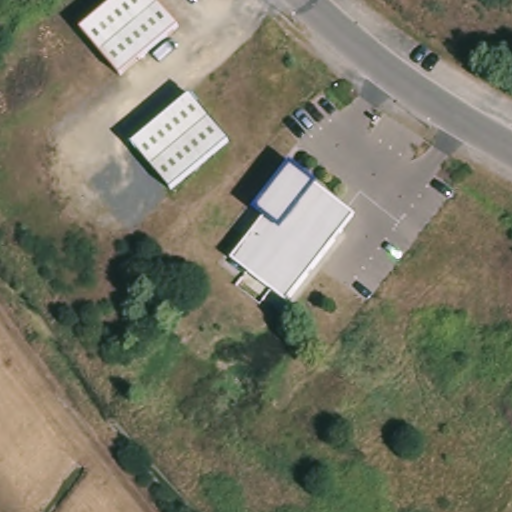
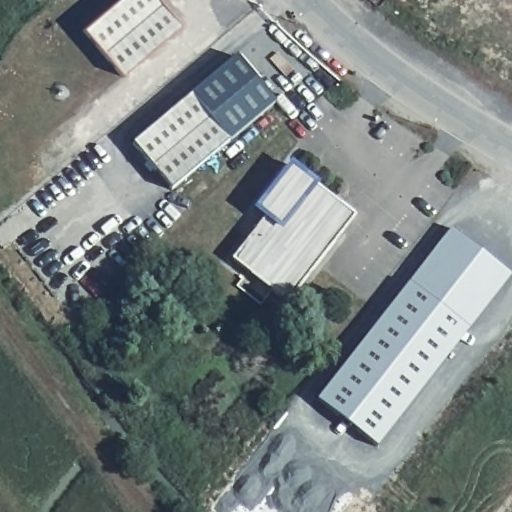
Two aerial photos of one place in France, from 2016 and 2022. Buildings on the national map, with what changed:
unchanged [(179,29),(120,78),(81,31),(119,0),(156,0),(179,29)]
unchanged [(229,140),(171,189),(132,142),(191,94),(229,140)]
unchanged [(354,215),(286,301),(232,259),(265,217),(254,209),(290,163),(317,184),(354,215)]
new [(478,251),(509,276),(501,288),(375,449),(316,402),(451,230),(478,251)]

